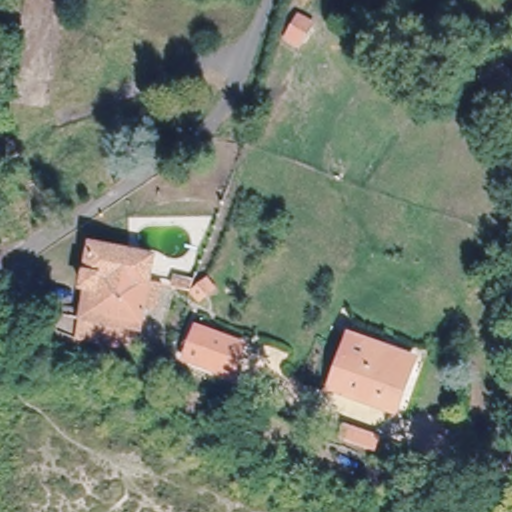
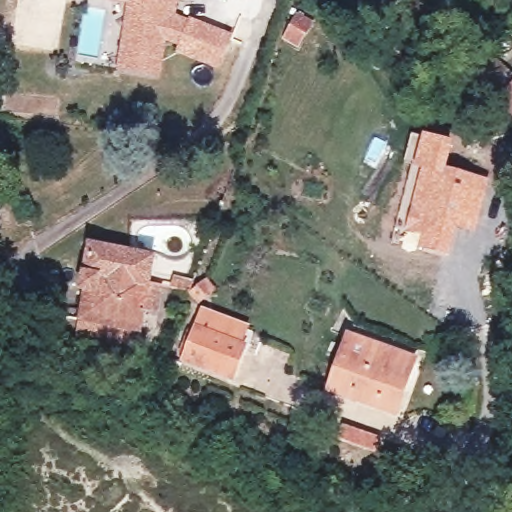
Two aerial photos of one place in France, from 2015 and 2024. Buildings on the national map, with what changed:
new [(189,19),(191,15),(234,33),(220,69),(175,53),(179,44),(169,42),(165,77),(118,71),(127,2),(116,0),(179,0),(178,14),(189,19)]
unchanged [(449,40),(441,53),(418,39),(426,26),(449,40)]
unchanged [(512,112),(482,82),(499,64),(512,77),(512,112)]
new [(412,132),(456,141),(449,167),(490,179),(475,233),(458,228),(450,255),(417,247),(420,236),(405,232),(420,167),(404,161),(412,132)]
unchanged [(143,305),(139,327),(80,315),(86,285),(94,244),(152,255),(148,279),(161,281),(156,308),(143,305)]
unchanged [(190,291),(172,287),(174,276),(192,280),(190,291)]
unchanged [(135,345),(77,333),(80,315),(139,327),(135,345)]
unchanged [(244,348),(234,377),(188,362),(198,333),(244,348)]
unchanged [(356,399),(332,390),(351,338),(414,361),(398,406),(396,413),(356,399)]
unchanged [(343,438),(348,426),(379,438),(374,450),(343,438)]

